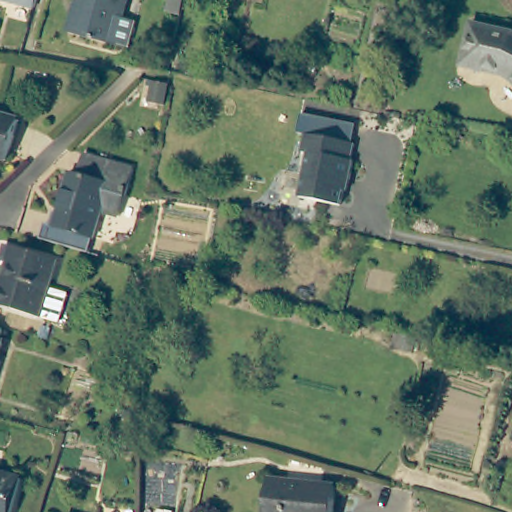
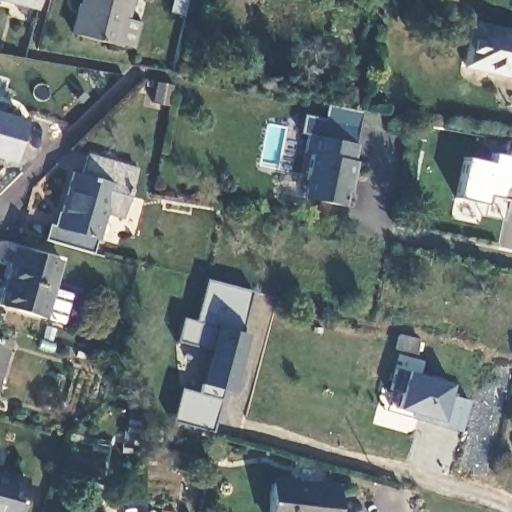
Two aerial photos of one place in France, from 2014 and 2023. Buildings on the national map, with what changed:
unchanged [(41,7),(13,0),(42,0),(41,7)]
unchanged [(131,45),(117,43),(117,45),(71,32),(76,13),(77,13),(81,0),(128,0),(124,18),(137,21),(131,45)]
unchanged [(512,79),(502,73),(462,65),(472,22),(512,31),(512,79)]
unchanged [(19,119),(7,160),(0,158),(0,114),(19,119)]
unchanged [(353,144),(350,161),(352,161),(349,179),(345,179),(340,205),(298,197),(307,153),(301,152),(305,134),(353,144)]
new [(488,160),(490,151),(502,153),(505,139),(512,141),(512,186),(510,186),(507,199),(486,195),(484,203),(454,197),(462,155),(488,160)]
unchanged [(47,228),(52,210),(61,213),(77,162),(82,164),(89,142),(139,157),(125,205),(107,200),(99,227),(94,242),(47,228)]
unchanged [(61,322),(42,317),(0,305),(0,289),(7,261),(1,259),(5,244),(60,260),(51,289),(68,294),(61,322)]
new [(196,392),(198,383),(209,349),(176,340),(182,317),(195,320),(206,279),(252,290),(238,332),(245,334),(230,390),(222,388),(211,430),(171,421),(179,388),(196,392)]
unchanged [(417,339),(413,352),(395,347),(397,334),(417,339)]
unchanged [(3,342),(0,353),(0,341),(3,342)]
new [(382,409),(394,367),(449,382),(446,393),(467,400),(458,430),(382,409)]
unchanged [(137,412),(137,432),(123,431),(125,412),(137,412)]
unchanged [(12,512),(0,512),(0,472),(22,478),(12,512)]
unchanged [(333,512),(268,512),(272,478),(335,484),(333,512)]

